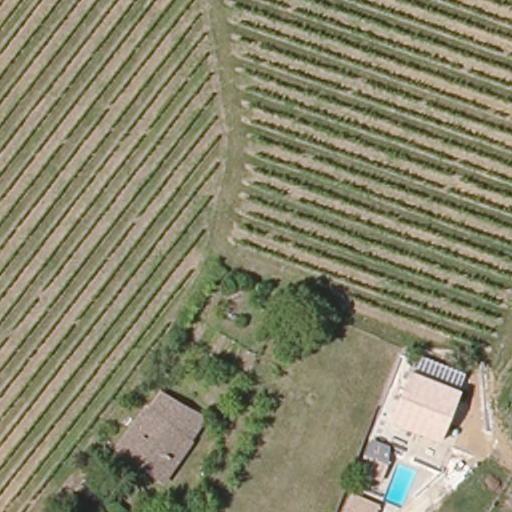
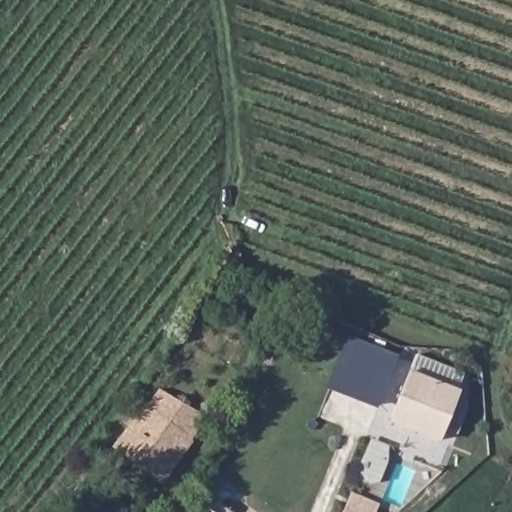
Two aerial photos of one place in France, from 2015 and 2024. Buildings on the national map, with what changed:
new [(347,334),(396,356),(375,409),(324,388),(347,334)]
unchanged [(457,389),(439,437),(389,418),(406,371),(457,389)]
unchanged [(202,416),(162,479),(119,454),(158,391),(202,416)]
new [(378,504),(375,512),(342,512),(350,492),(378,504)]

